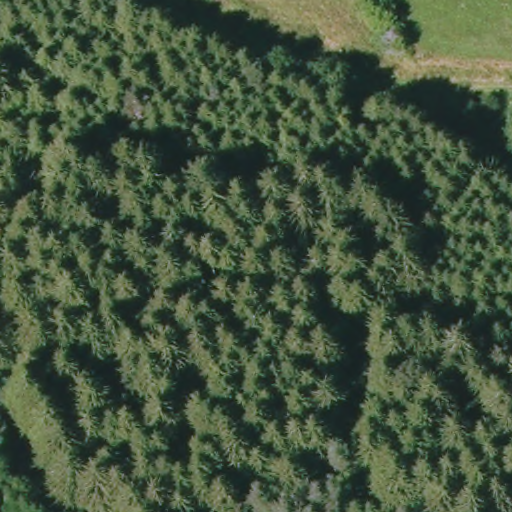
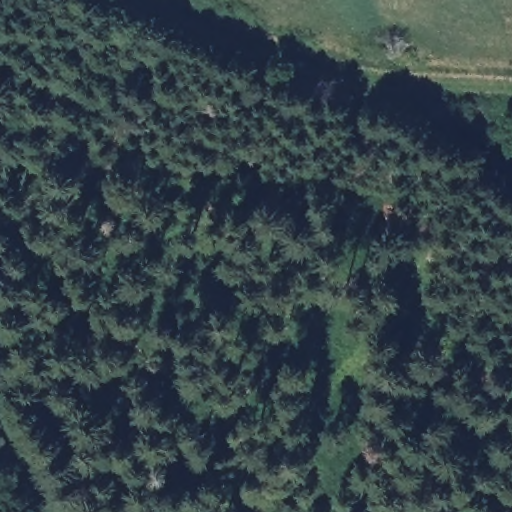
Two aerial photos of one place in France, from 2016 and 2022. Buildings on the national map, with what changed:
unchanged [(403,206),(404,227),(386,229),(382,208),(403,206)]

